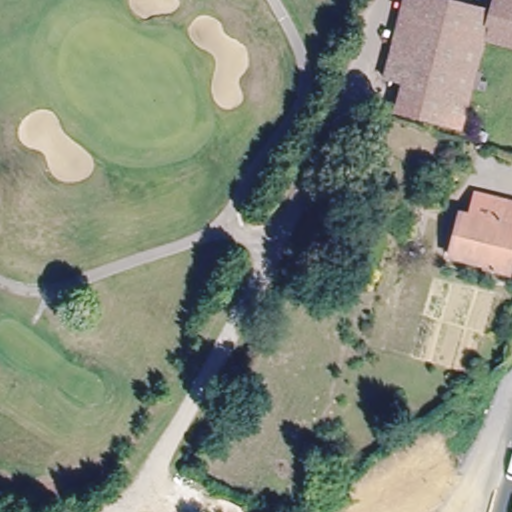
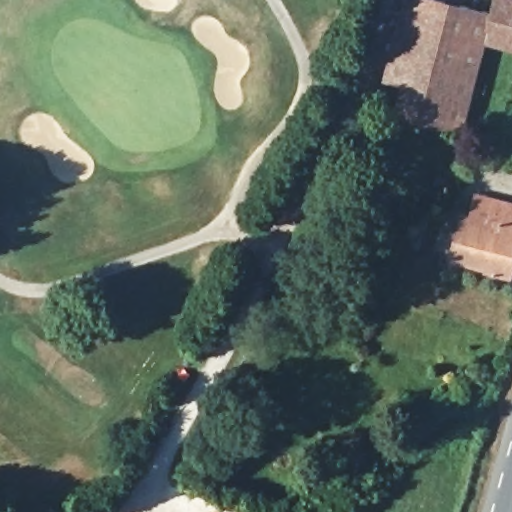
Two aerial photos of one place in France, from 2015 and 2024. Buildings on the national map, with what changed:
unchanged [(463,0),(485,6),(477,31),(485,34),(462,126),(395,109),(402,80),(386,75),(383,75),(403,0),(463,0)]
unchanged [(493,8),(495,0),(512,0),(512,40),(485,34),(477,31),(485,6),(493,8)]
unchanged [(375,147),(390,156),(372,186),(357,176),(375,147)]
unchanged [(492,196),(512,201),(512,241),(505,272),(480,266),(481,263),(445,254),(455,210),(487,218),(492,196)]

